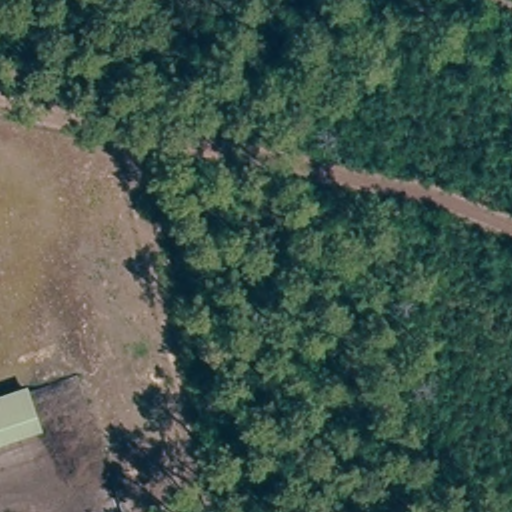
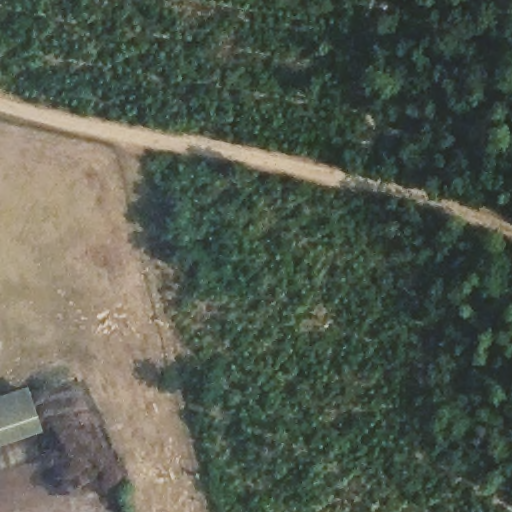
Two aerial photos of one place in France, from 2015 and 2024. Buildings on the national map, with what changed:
unchanged [(27,385),(39,417),(0,431),(0,394),(27,385)]

